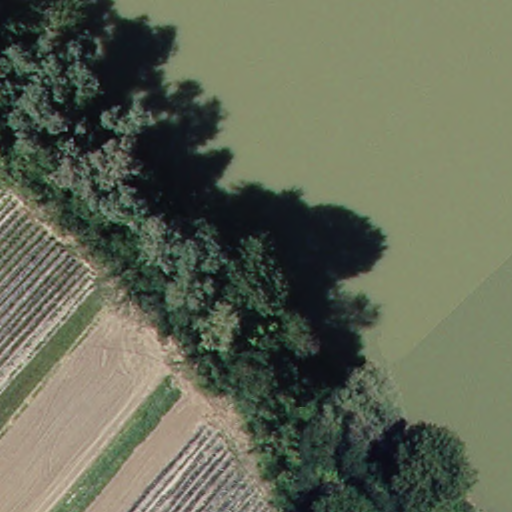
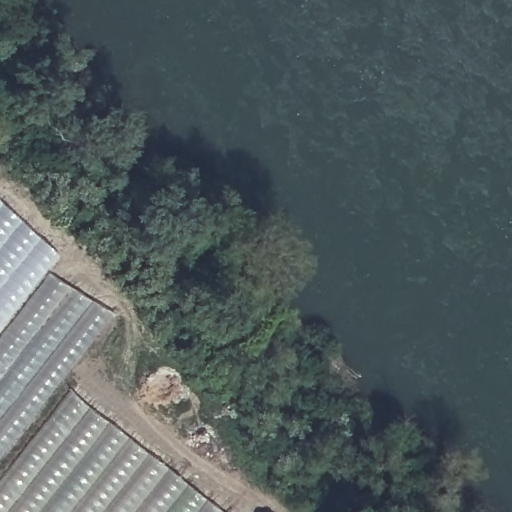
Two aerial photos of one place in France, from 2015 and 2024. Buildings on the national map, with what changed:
new [(0,328),(0,203),(58,256),(0,328)]
new [(0,456),(0,338),(51,272),(112,313),(0,456)]
new [(70,393),(223,512),(0,512),(0,482),(70,393)]

